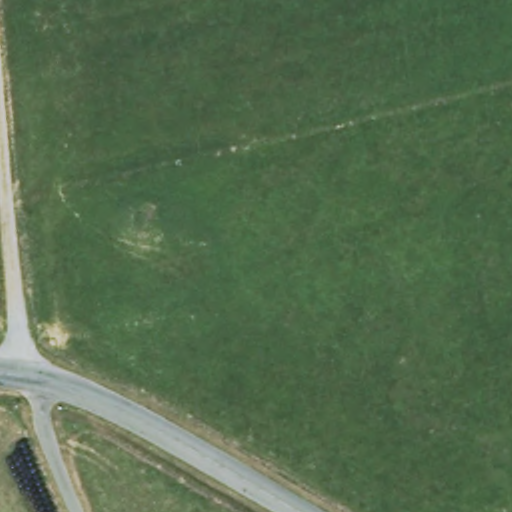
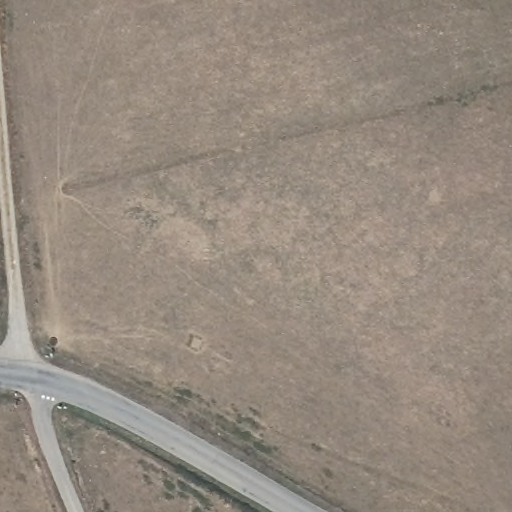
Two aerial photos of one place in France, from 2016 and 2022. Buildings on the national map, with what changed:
[]

